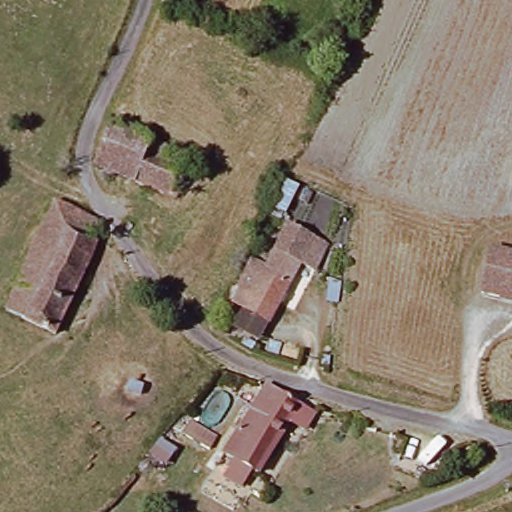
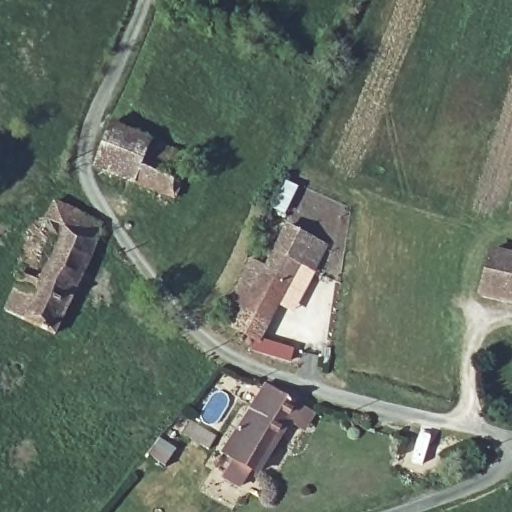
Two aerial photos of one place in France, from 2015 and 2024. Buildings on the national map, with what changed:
unchanged [(91,168),(112,129),(187,162),(181,177),(139,159),(124,185),(90,170),(91,168)]
unchanged [(139,159),(181,177),(169,206),(124,185),(139,159)]
unchanged [(49,335),(1,313),(48,206),(98,225),(49,335)]
unchanged [(251,261),(263,267),(285,227),(324,247),(312,271),(297,263),(269,320),(232,302),(230,301),(251,261)]
unchanged [(512,253),(512,302),(479,295),(490,248),(512,253)]
unchanged [(230,301),(232,302),(267,320),(269,320),(257,344),(218,323),(230,301)]
unchanged [(266,388),(300,410),(314,419),(303,436),(289,426),(255,476),(222,454),(266,388)]

